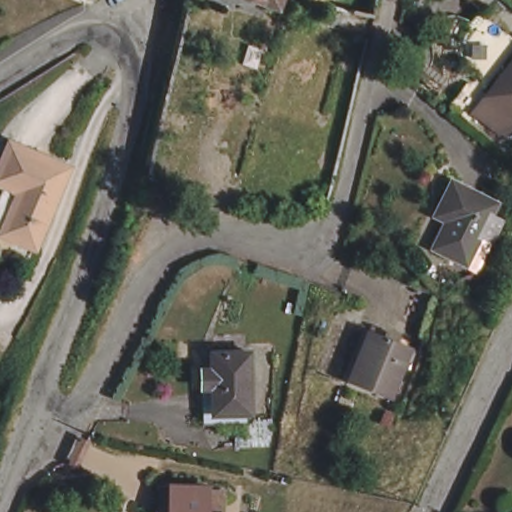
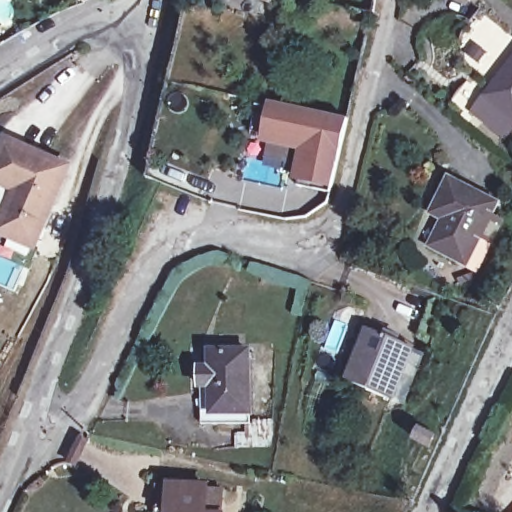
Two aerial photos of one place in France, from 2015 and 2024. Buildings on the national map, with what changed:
unchanged [(271,5),(252,0),(273,0),(271,5)]
unchanged [(510,33),(487,60),(459,38),(482,11),(510,33)]
unchanged [(478,107),(512,64),(512,130),(510,133),(478,107)]
new [(259,104),(276,108),(277,103),(350,118),(337,176),(331,191),(299,184),(307,147),(270,139),(271,134),(254,131),(259,104)]
unchanged [(3,144),(64,169),(31,246),(0,232),(0,227),(16,187),(0,180),(0,151),(3,144)]
unchanged [(492,198),(471,262),(433,251),(440,225),(430,222),(441,182),(492,198)]
unchanged [(411,341),(391,397),(348,381),(368,326),(411,341)]
unchanged [(204,377),(205,359),(216,359),(217,344),(253,345),(251,418),(214,417),(203,417),(204,377)]
unchanged [(204,488),(224,489),(222,512),(162,512),(163,488),(204,488)]

